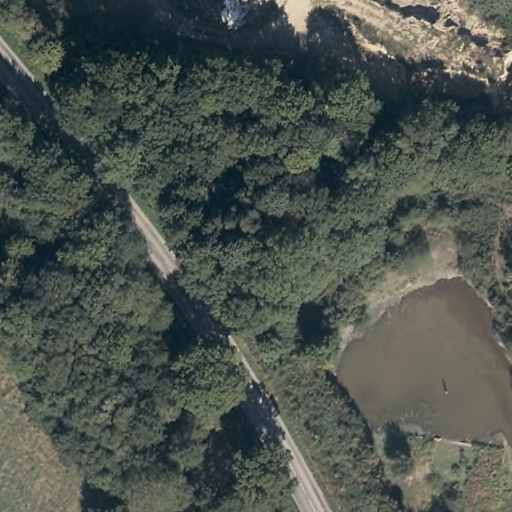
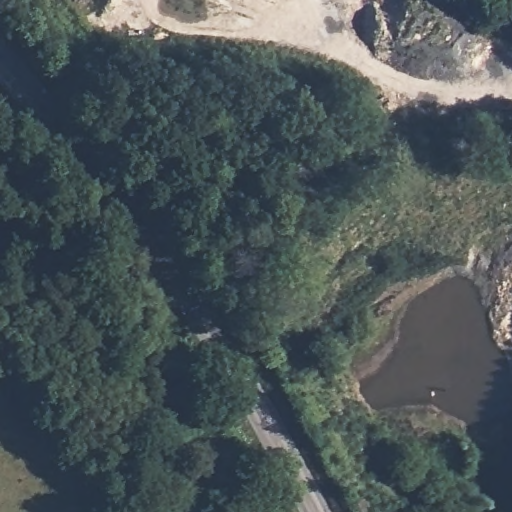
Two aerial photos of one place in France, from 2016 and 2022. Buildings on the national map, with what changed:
[]

